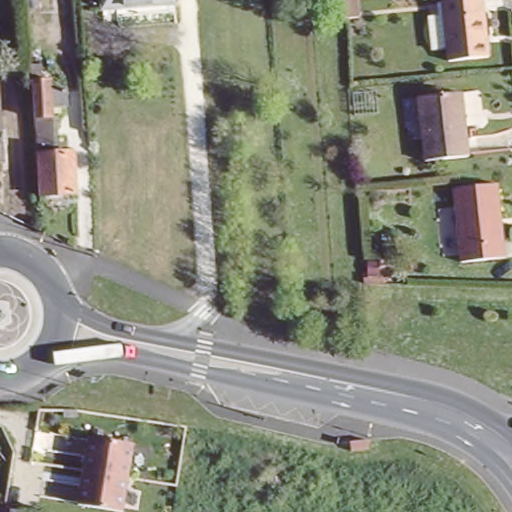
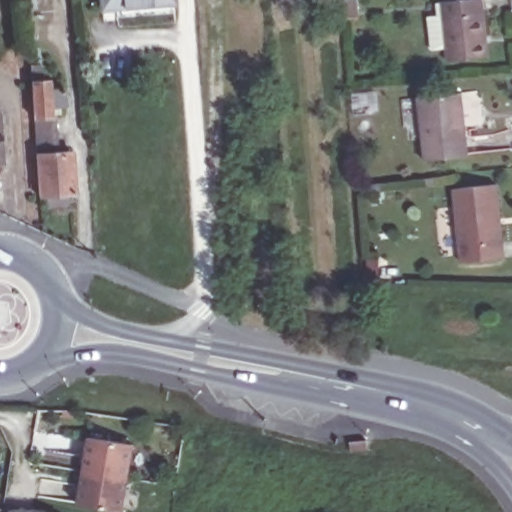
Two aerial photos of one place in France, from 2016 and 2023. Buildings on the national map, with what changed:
unchanged [(173,0),(173,4),(160,4),(125,6),(104,7),(104,0),(173,0)]
unchanged [(476,0),(477,2),(489,0),(495,59),(455,62),(454,50),(439,51),(436,17),(451,16),(450,4),(452,4),(452,0),(476,0)]
unchanged [(74,153),(76,191),(31,194),(27,116),(25,80),(43,79),(43,88),(57,87),(59,106),(46,107),(45,115),(41,115),(43,151),(48,152),(74,153)]
unchanged [(463,155),(423,157),(418,96),(459,92),(463,155)]
unchanged [(504,257),(462,262),(455,190),(497,186),(504,257)]
unchanged [(77,503),(88,436),(135,444),(122,511),(77,503)]
unchanged [(19,512),(0,512),(0,509),(19,512)]

